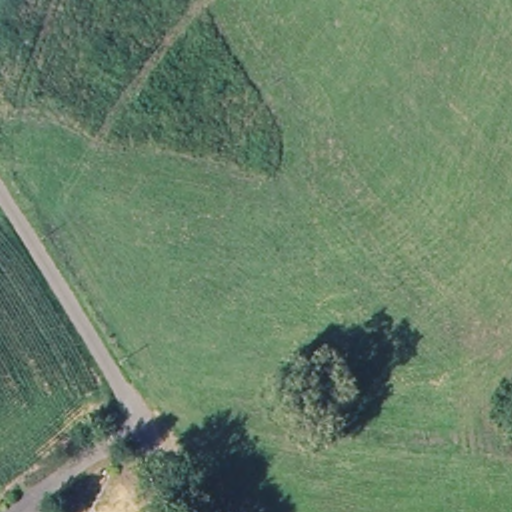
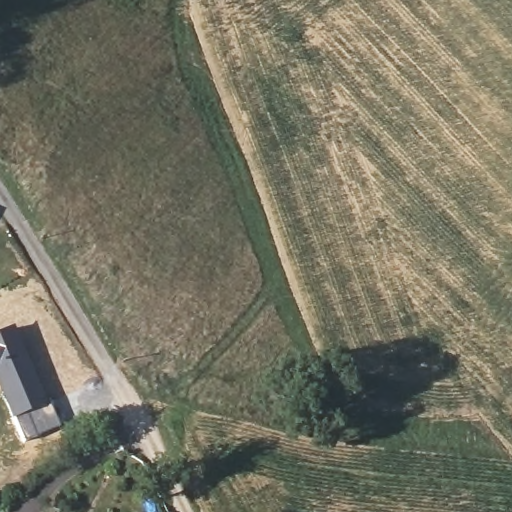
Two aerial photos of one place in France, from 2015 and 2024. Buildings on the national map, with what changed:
new [(14,327),(50,403),(12,420),(0,393),(0,332),(14,327)]
new [(50,403),(60,427),(24,442),(12,420),(50,403)]

